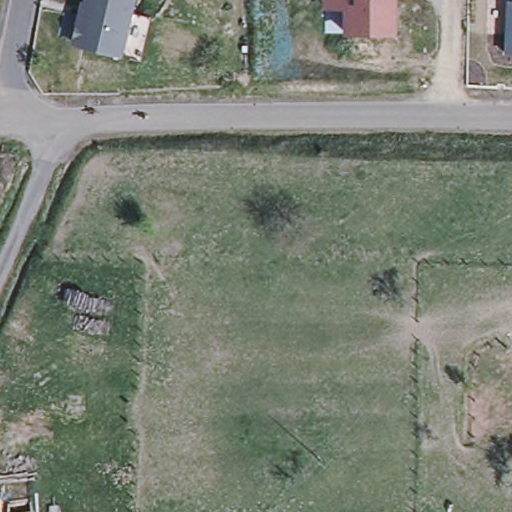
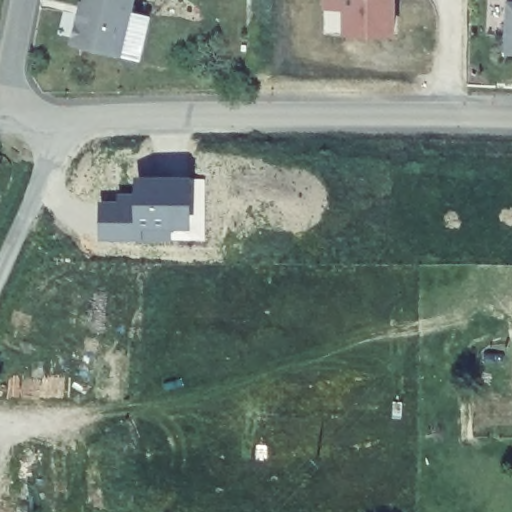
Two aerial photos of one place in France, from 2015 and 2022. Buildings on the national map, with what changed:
unchanged [(122,57),(79,46),(74,38),(75,32),(83,2),(85,2),(86,0),(135,0),(128,32),(122,57)]
unchanged [(395,0),(394,32),(344,32),(344,7),(324,4),(324,0),(395,0)]
unchanged [(512,0),(512,51),(505,52),(507,1),(512,0)]
new [(119,205),(119,196),(134,196),(134,182),(191,182),(188,228),(168,227),(167,242),(99,241),(99,205),(119,205)]

